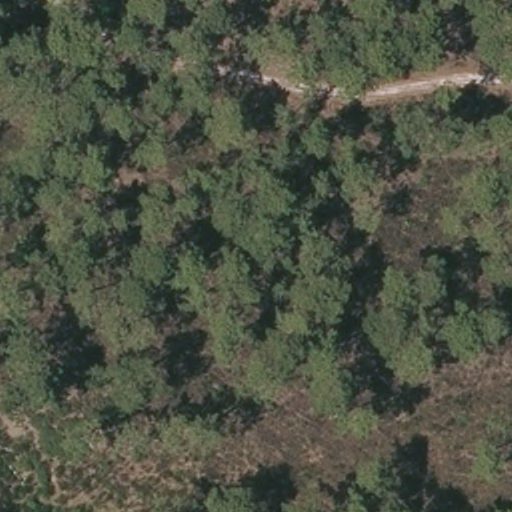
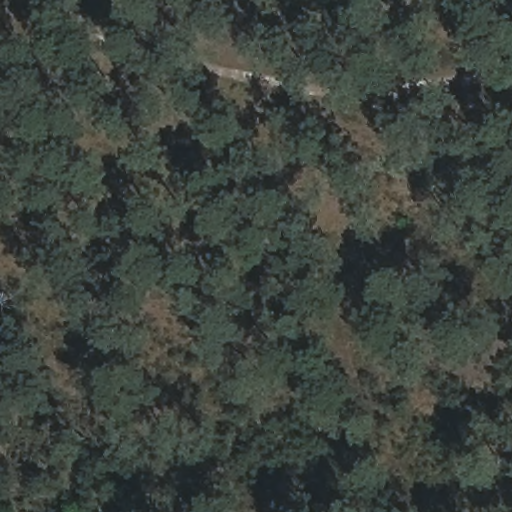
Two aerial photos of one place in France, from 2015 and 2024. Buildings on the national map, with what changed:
unchanged [(398,7),(380,3),(380,0),(400,0),(398,7)]

